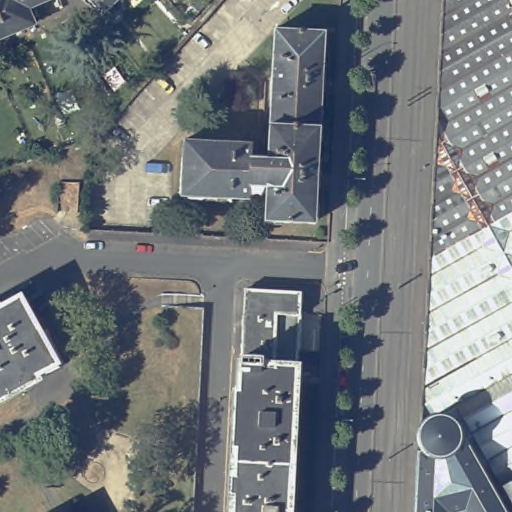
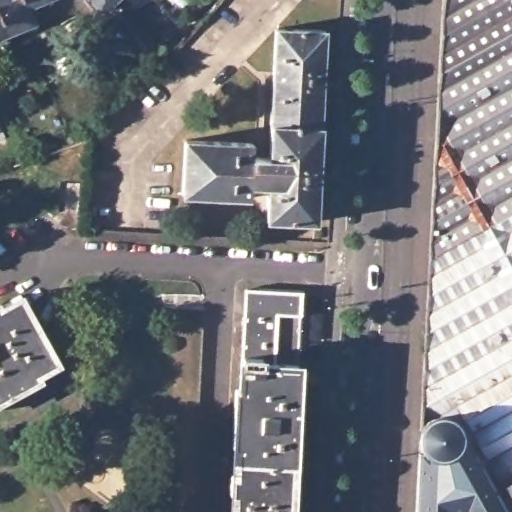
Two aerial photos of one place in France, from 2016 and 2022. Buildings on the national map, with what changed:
unchanged [(35,18),(7,29),(0,11),(0,0),(27,0),(29,3),(35,18)]
unchanged [(35,0),(29,3),(27,0),(35,0)]
unchanged [(117,0),(103,11),(93,0),(117,0)]
unchanged [(442,0),(512,0),(512,512),(415,512),(442,0)]
unchanged [(0,33),(0,11),(7,29),(0,33)]
unchanged [(267,219),(269,184),(251,184),(250,198),(182,194),(185,140),(252,143),(252,155),(270,156),(277,28),(326,30),(316,220),(267,219)]
unchanged [(250,288),(306,290),(294,512),(238,512),(250,288)]
unchanged [(3,307),(25,294),(63,363),(25,383),(27,388),(0,402),(0,311),(4,309),(3,307)]
unchanged [(177,305),(204,307),(193,512),(167,512),(177,305)]

